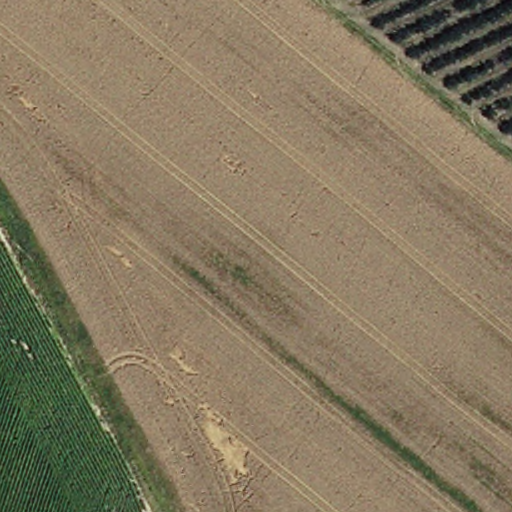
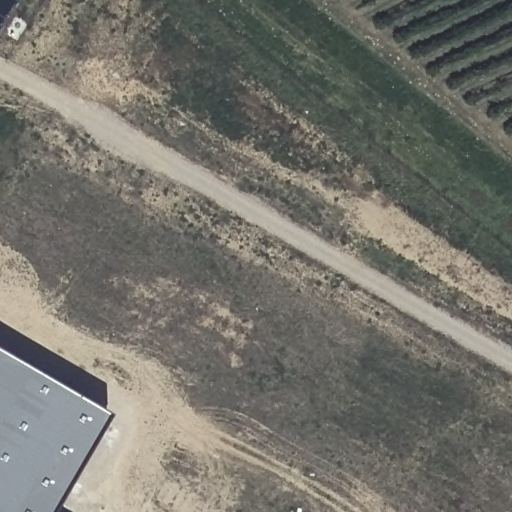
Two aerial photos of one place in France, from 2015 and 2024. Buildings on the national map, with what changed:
new [(106,418),(52,512),(0,512),(0,356),(106,418)]

